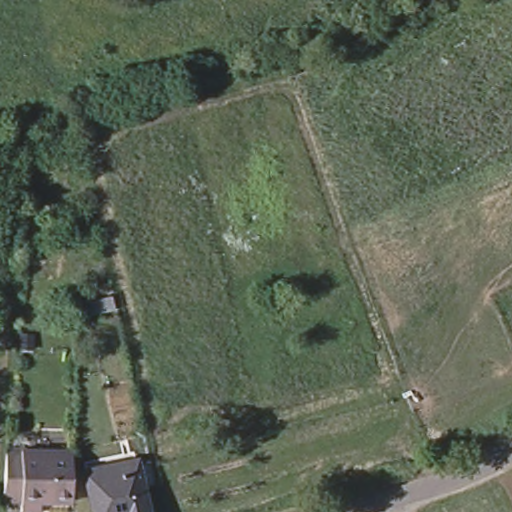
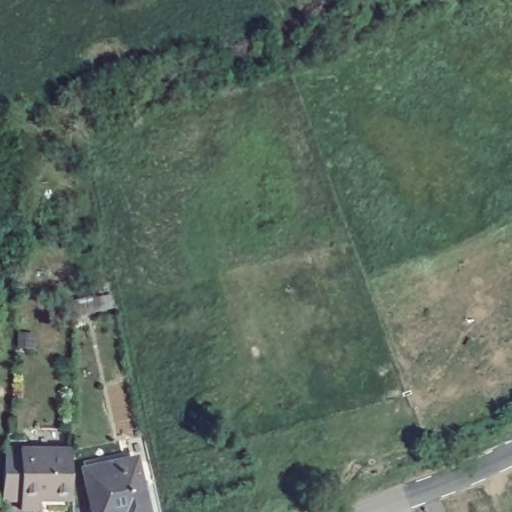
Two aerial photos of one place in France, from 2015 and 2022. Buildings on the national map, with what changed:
unchanged [(106,271),(109,281),(76,290),(73,279),(106,271)]
unchanged [(48,504),(48,499),(37,499),(37,512),(19,512),(20,503),(3,503),(7,453),(72,453),(71,504),(48,504)]
unchanged [(144,512),(92,512),(82,467),(133,456),(144,512)]

